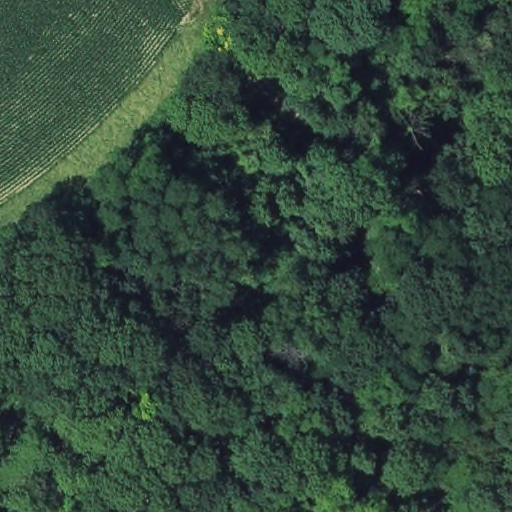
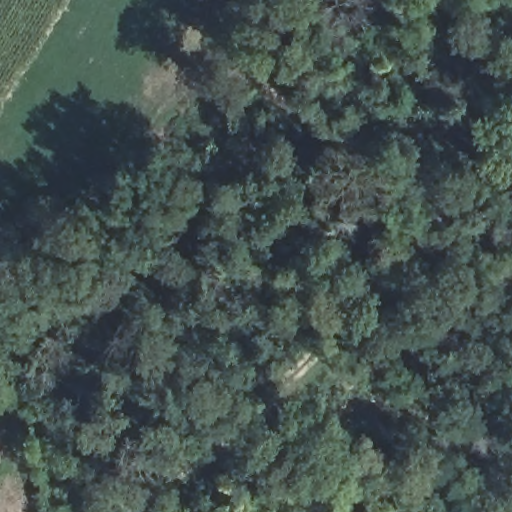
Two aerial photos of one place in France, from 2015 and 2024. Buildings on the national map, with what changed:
unchanged [(257,155),(253,158),(250,154),(241,144),(243,142),(250,135),(259,145),(263,149),(257,155)]

